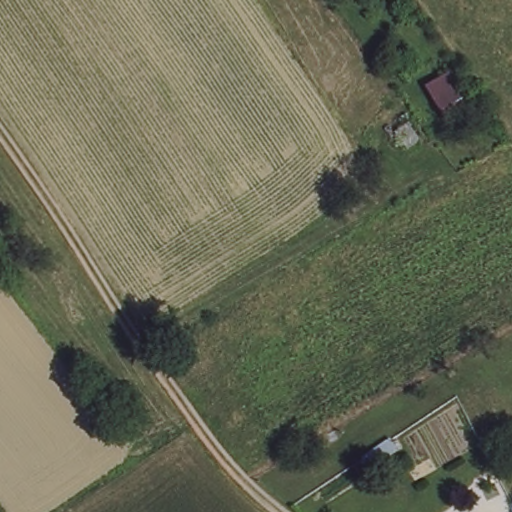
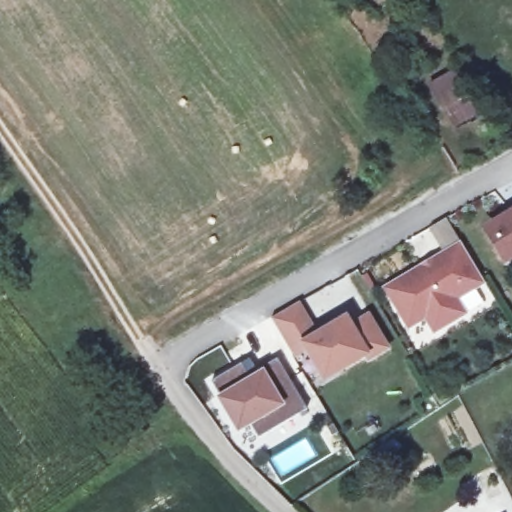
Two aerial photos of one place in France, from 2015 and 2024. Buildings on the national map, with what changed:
unchanged [(439,99),(427,77),(449,65),(473,104),(451,116),(439,99)]
new [(512,213),(512,256),(507,259),(489,227),(512,213)]
new [(483,281),(454,298),(464,313),(434,331),(426,316),(409,326),(387,288),(461,245),(483,281)]
new [(314,332),(343,315),(350,326),(368,316),(386,347),(369,358),(366,353),(324,378),(306,349),(293,357),(270,317),(296,303),(314,332)]
new [(307,408),(259,437),(249,422),(238,428),(209,382),(241,364),(250,379),(262,372),(259,368),(277,357),(307,408)]

